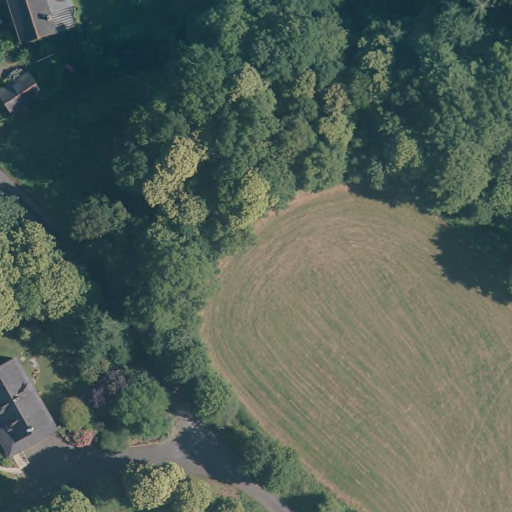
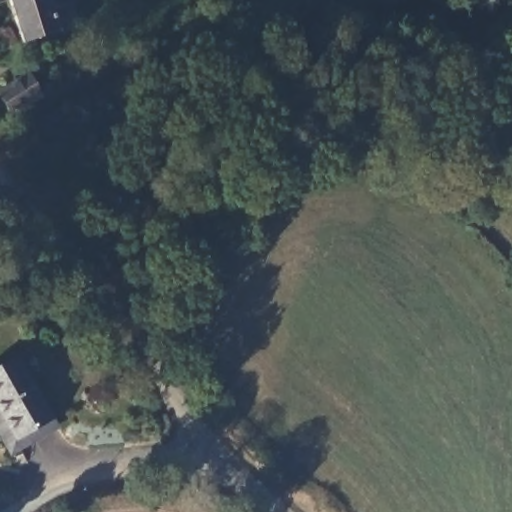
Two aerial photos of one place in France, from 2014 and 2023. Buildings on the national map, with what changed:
unchanged [(9,0),(51,0),(61,26),(23,41),(9,0)]
unchanged [(11,116),(7,109),(0,98),(0,88),(31,67),(45,89),(11,116)]
unchanged [(19,355),(56,427),(10,450),(0,430),(0,365),(19,355)]

